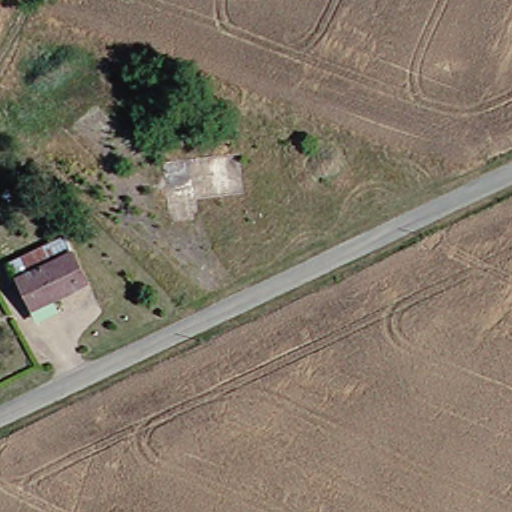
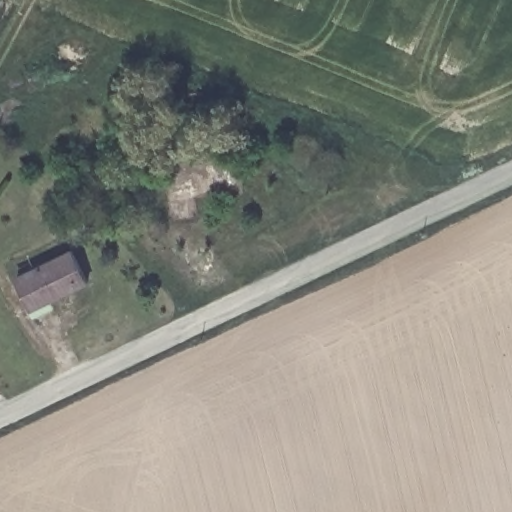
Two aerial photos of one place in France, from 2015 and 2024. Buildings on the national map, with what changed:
unchanged [(48,300),(54,314),(33,322),(27,310),(11,275),(4,259),(59,235),(67,251),(83,284),(48,300)]

